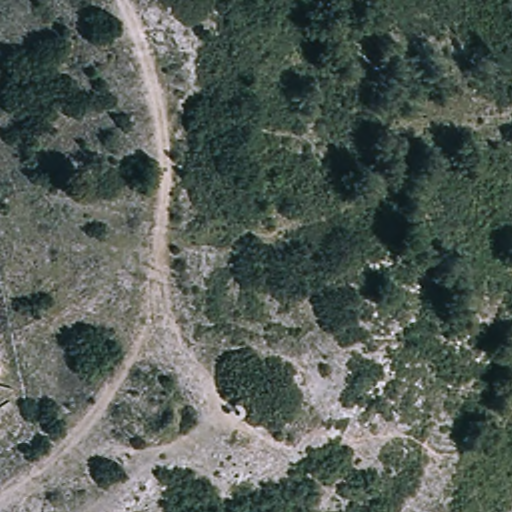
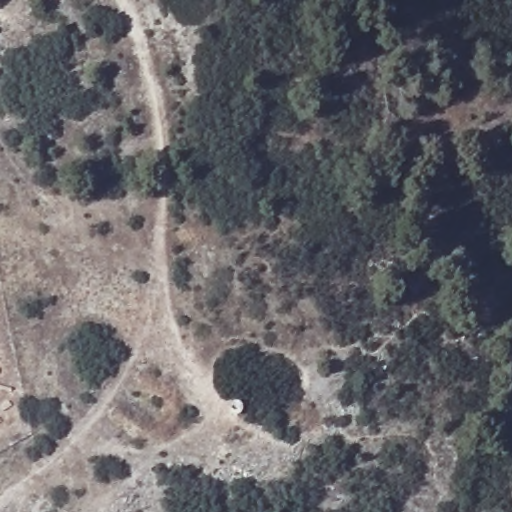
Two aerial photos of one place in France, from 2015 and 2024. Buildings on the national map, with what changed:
[]

